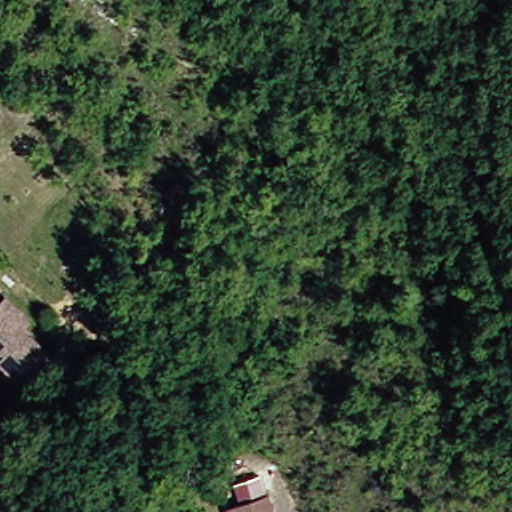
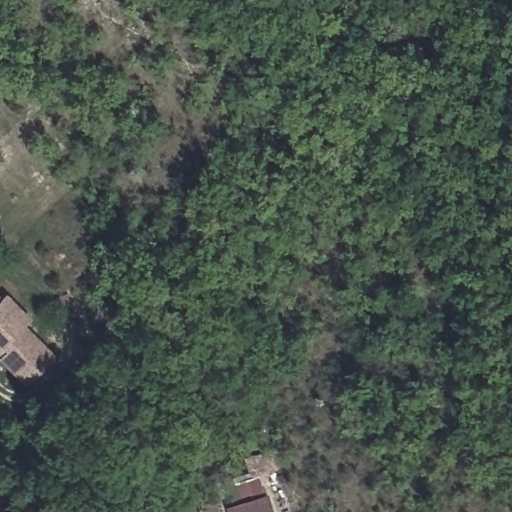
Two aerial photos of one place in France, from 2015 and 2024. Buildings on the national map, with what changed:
unchanged [(34,378),(28,383),(1,354),(0,353),(0,295),(5,300),(12,293),(29,310),(38,319),(30,327),(58,356),(40,373),(46,379),(40,384),(34,378)]
unchanged [(233,511),(273,499),(277,512),(233,512),(233,511)]

